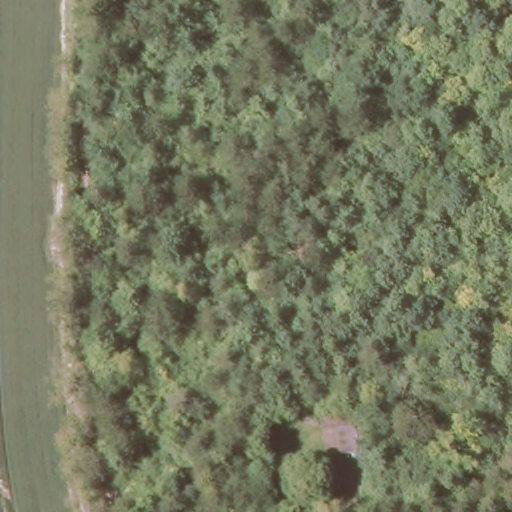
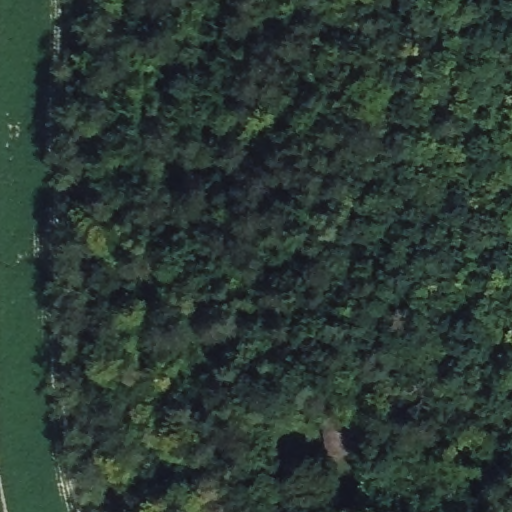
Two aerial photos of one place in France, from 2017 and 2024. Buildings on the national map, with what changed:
unchanged [(360,412),(360,457),(323,457),(320,413),(360,412)]

